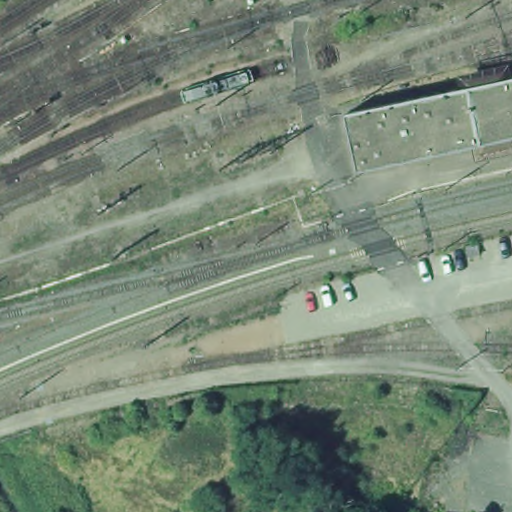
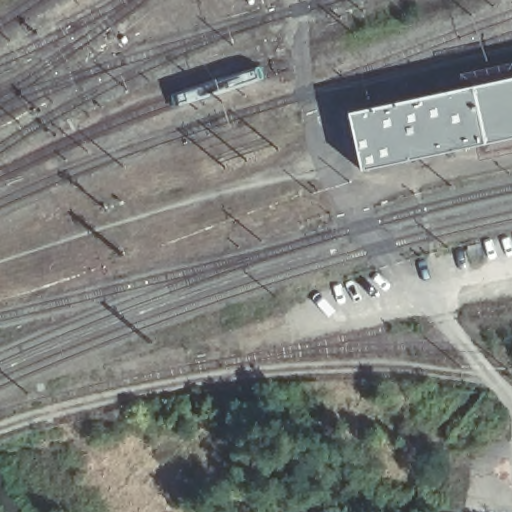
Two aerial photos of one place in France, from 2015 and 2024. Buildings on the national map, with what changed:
unchanged [(512,143),(365,175),(352,117),(512,82),(512,143)]

